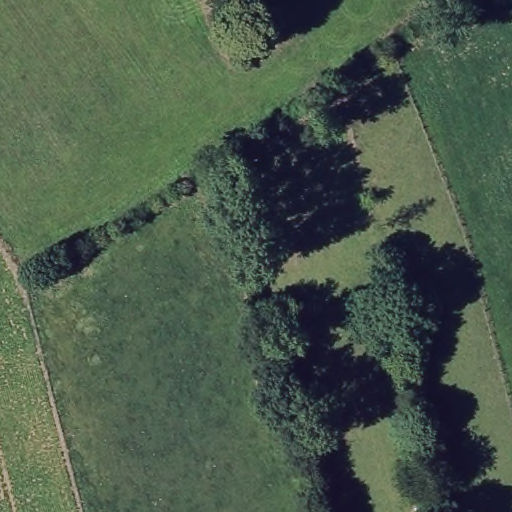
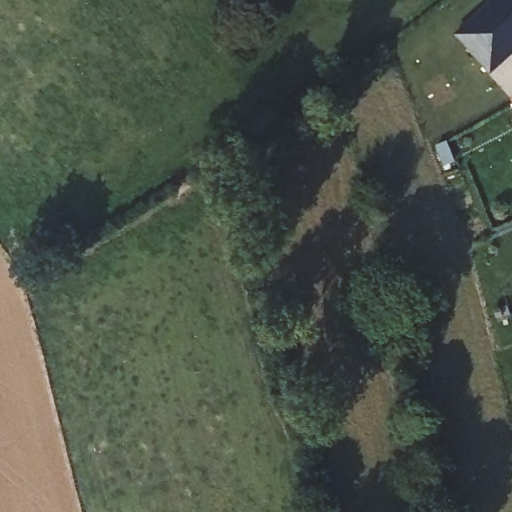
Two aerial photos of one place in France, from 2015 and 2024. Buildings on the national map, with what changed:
new [(456,36),(499,0),(512,0),(512,56),(491,75),(456,36)]
new [(512,100),(512,105),(510,101),(512,100)]

